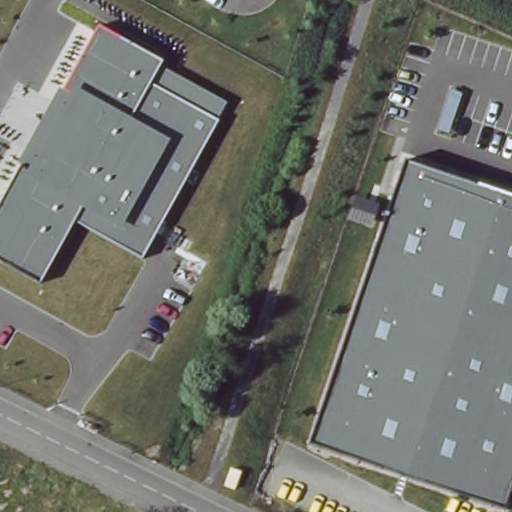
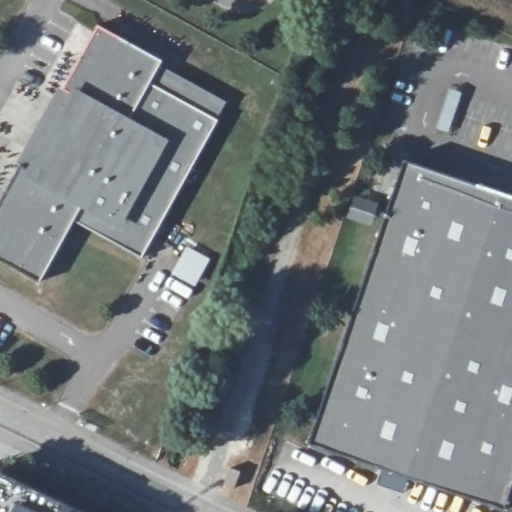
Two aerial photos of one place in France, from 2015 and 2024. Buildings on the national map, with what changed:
unchanged [(19,162),(61,88),(65,90),(100,25),(231,100),(143,259),(75,220),(41,282),(0,258),(0,207),(24,164),(19,162)]
unchanged [(505,508),(308,442),(406,159),(512,194),(512,484),(505,508)]
new [(0,475),(75,512),(0,512),(0,475)]

